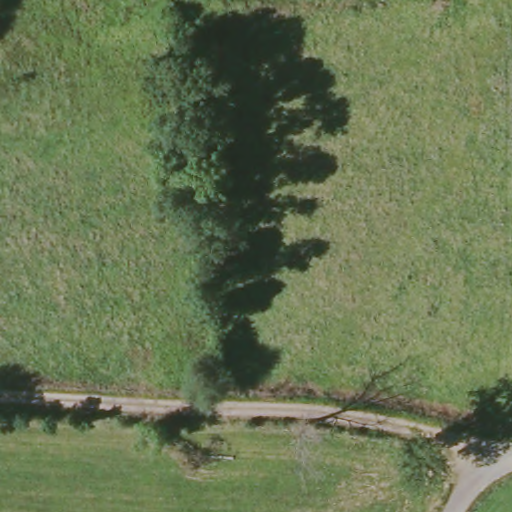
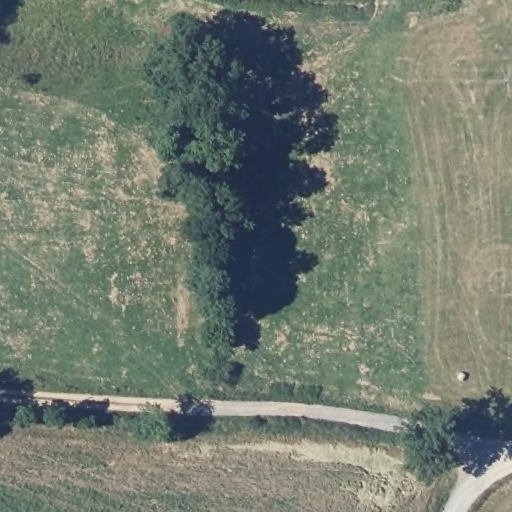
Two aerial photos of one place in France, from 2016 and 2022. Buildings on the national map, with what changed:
[]

